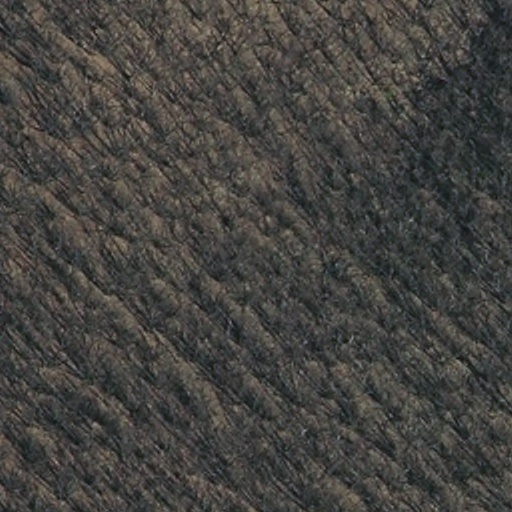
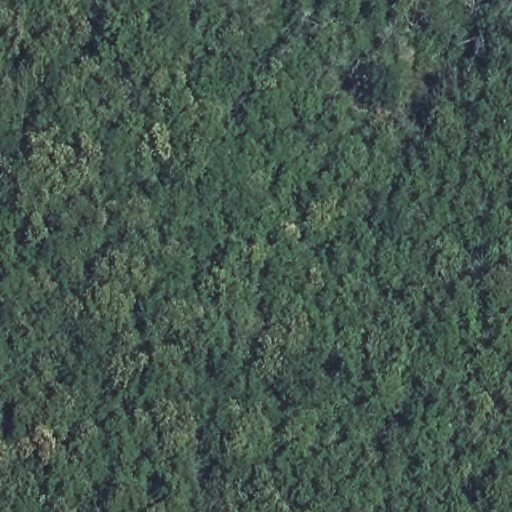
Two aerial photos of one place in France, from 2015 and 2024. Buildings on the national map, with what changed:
[]

